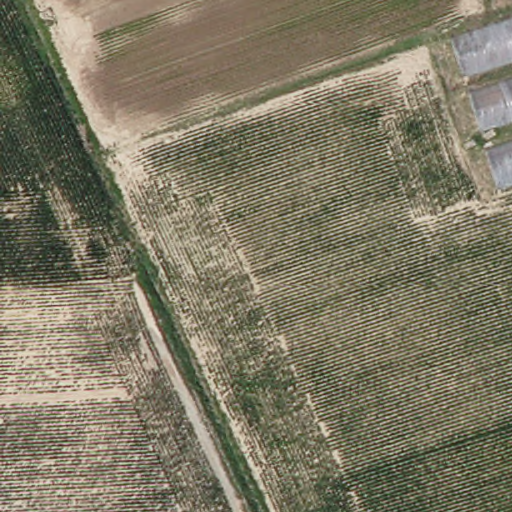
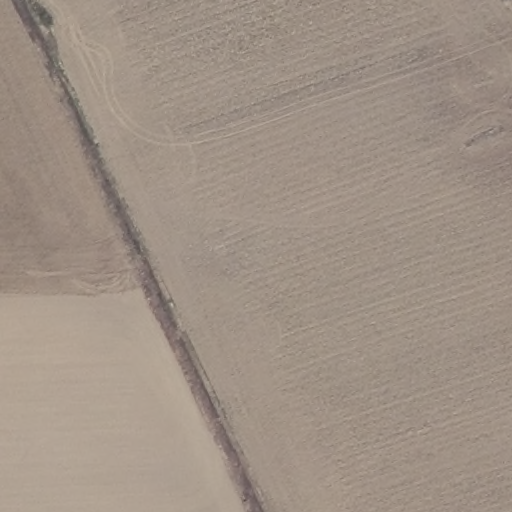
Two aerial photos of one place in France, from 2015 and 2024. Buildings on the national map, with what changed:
demolished [(512,17),(512,182),(500,185),(452,36),(512,17)]

